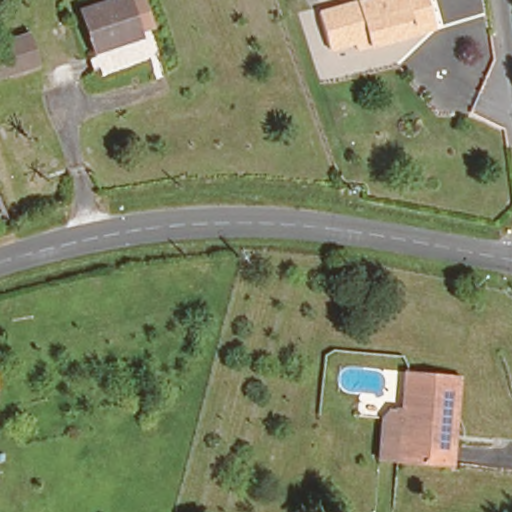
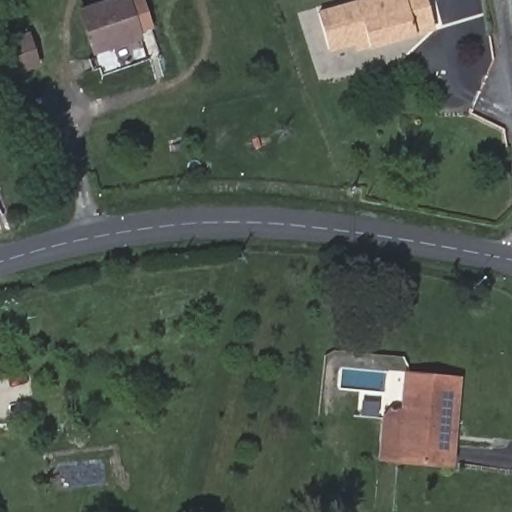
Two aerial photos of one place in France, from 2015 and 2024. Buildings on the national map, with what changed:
unchanged [(135,38),(89,51),(77,8),(107,0),(125,0),(135,38)]
unchanged [(412,33),(367,46),(363,35),(329,45),(320,10),(356,0),(424,0),(425,5),(431,27),(412,33)]
unchanged [(37,61),(0,72),(0,44),(30,36),(37,61)]
unchanged [(406,415),(408,372),(460,377),(453,460),(403,455),(383,454),(386,413),(406,415)]

